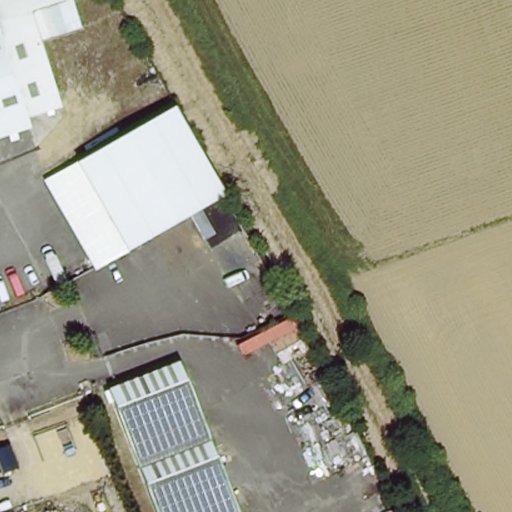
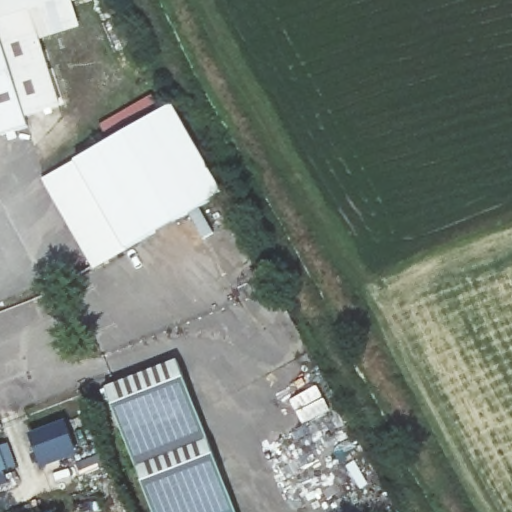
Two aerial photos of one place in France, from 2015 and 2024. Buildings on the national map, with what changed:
unchanged [(0,14),(0,0),(49,0),(31,5),(0,14)]
unchanged [(0,14),(31,5),(66,116),(28,126),(0,31),(0,14)]
unchanged [(0,136),(0,31),(28,126),(0,136)]
unchanged [(43,180),(77,161),(173,106),(173,105),(223,195),(125,250),(95,270),(43,180)]
unchanged [(104,388),(178,360),(239,512),(154,512),(104,388)]
new [(64,417),(76,455),(38,468),(26,431),(64,417)]

